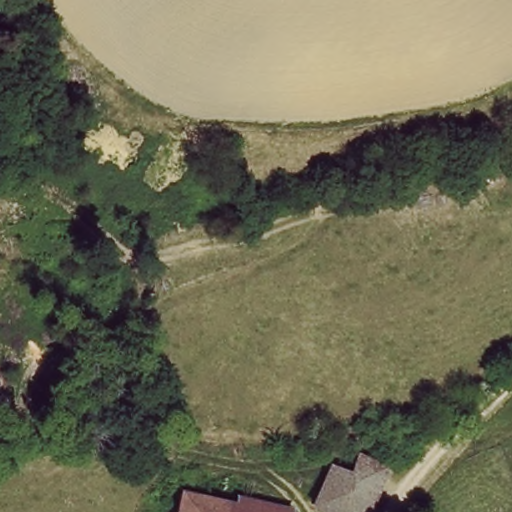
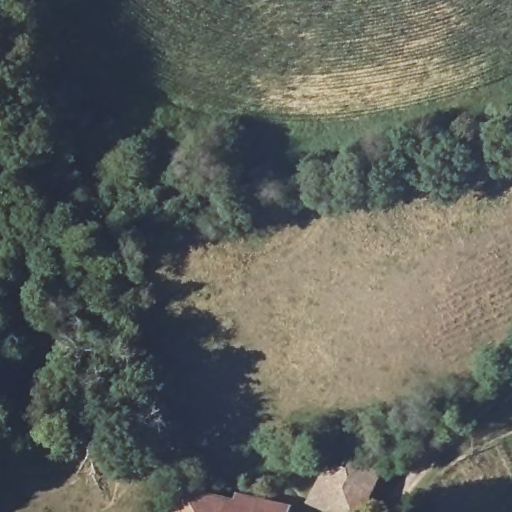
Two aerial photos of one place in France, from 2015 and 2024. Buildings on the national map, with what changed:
unchanged [(327,499),(341,463),(380,476),(365,512),(359,512),(327,499)]
unchanged [(274,503),(273,512),(175,512),(178,499),(274,503)]

